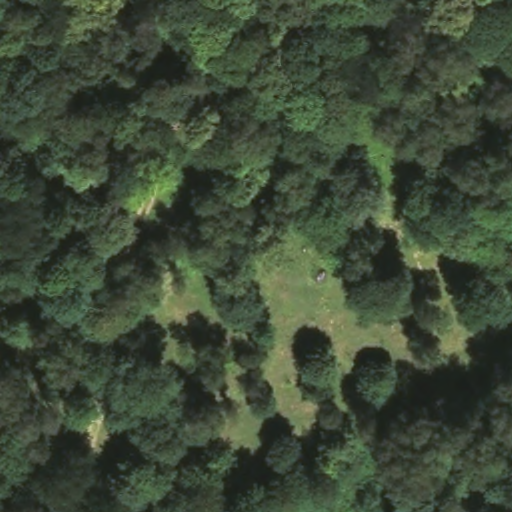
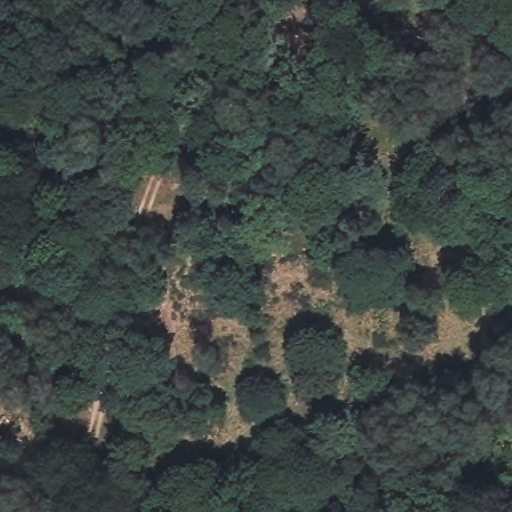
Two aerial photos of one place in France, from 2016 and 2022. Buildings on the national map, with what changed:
[]

